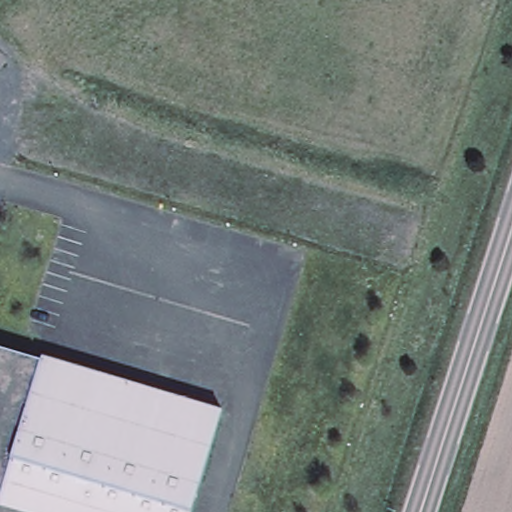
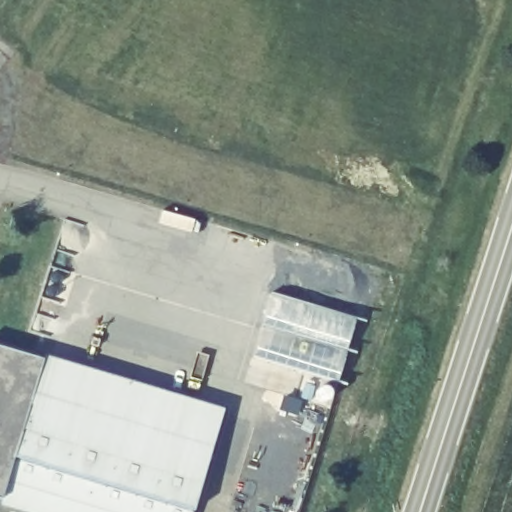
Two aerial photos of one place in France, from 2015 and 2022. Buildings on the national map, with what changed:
new [(276,292),(358,316),(349,348),(266,324),(276,292)]
new [(266,324),(349,348),(339,381),(257,356),(266,324)]
unchanged [(0,489),(0,347),(40,358),(0,489)]
unchanged [(220,408),(189,512),(28,512),(0,504),(0,489),(40,358),(41,354),(220,408)]
new [(320,391),(321,389),(322,386),(324,385),(329,384),(333,387),(334,389),(335,391),(334,396),(331,399),(328,400),(324,399),(322,398),(320,393),(320,391)]

